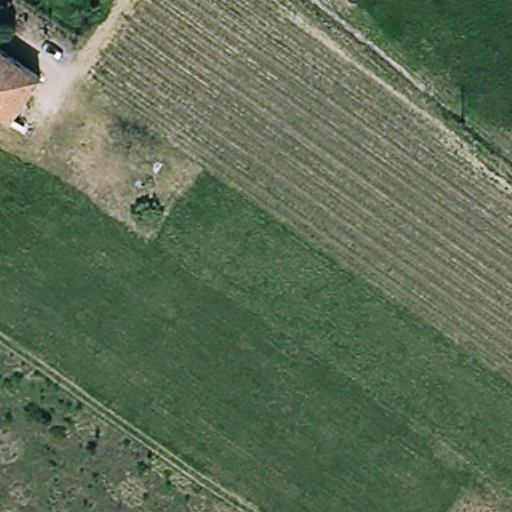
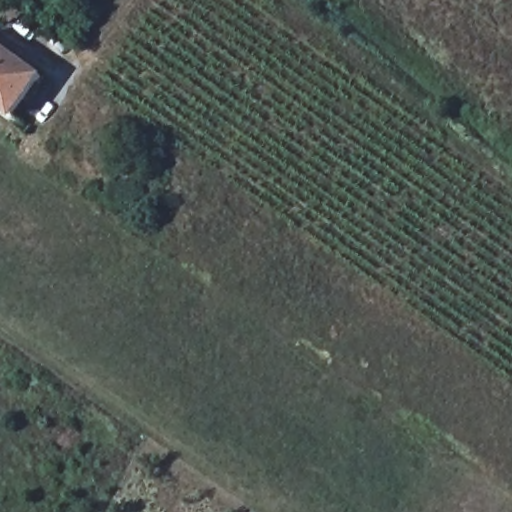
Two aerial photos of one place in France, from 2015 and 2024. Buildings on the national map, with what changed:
unchanged [(10,118),(0,111),(0,52),(36,80),(10,118)]

